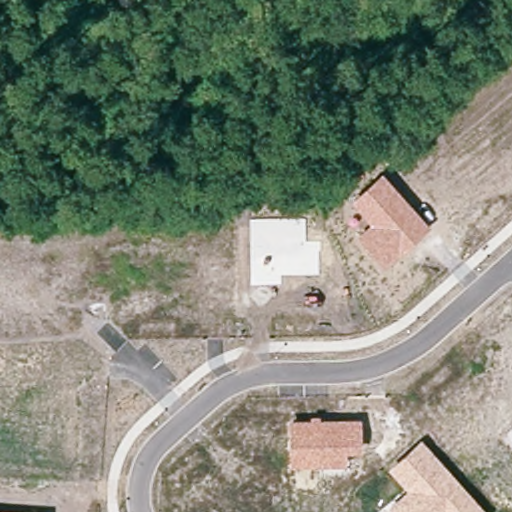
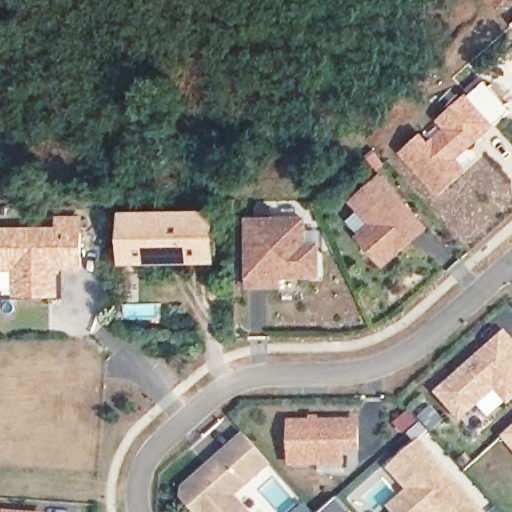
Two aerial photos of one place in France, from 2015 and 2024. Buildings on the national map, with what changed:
unchanged [(433,145),(453,128),(445,120),(449,116),(472,95),(498,123),(485,135),(476,142),(457,159),(467,170),(443,192),(408,152),(425,137),(433,145)]
unchanged [(431,227),(384,269),(357,239),(372,225),(352,200),(383,171),(431,227)]
new [(56,227),(56,215),(84,215),(85,269),(60,270),(61,297),(15,298),(14,270),(0,270),(0,227),(56,227)]
new [(134,239),(134,216),(191,216),(213,215),(213,232),(213,255),(156,256),(135,256),(134,239)]
new [(283,278),(283,289),(247,290),(246,217),(308,217),(309,242),(322,242),(323,275),(283,278)]
new [(441,394),(507,335),(512,341),(512,399),(510,401),(498,388),(479,405),(463,419),(460,415),(441,394)]
unchanged [(362,419),(363,454),(348,454),(347,465),(290,466),(290,419),(362,419)]
new [(512,430),(512,449),(503,438),(512,430)]
new [(220,458),(247,435),(251,439),(272,463),(234,497),(247,512),(197,512),(185,498),(186,489),(220,458)]
unchanged [(487,512),(393,512),(389,507),(406,490),(388,468),(422,440),(487,512)]
unchanged [(22,512),(0,512),(0,510),(22,512)]

